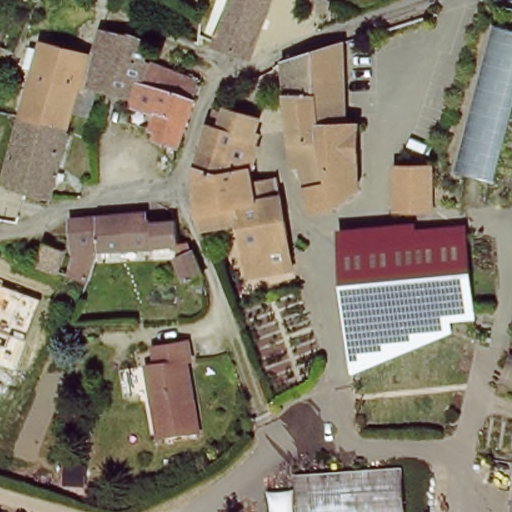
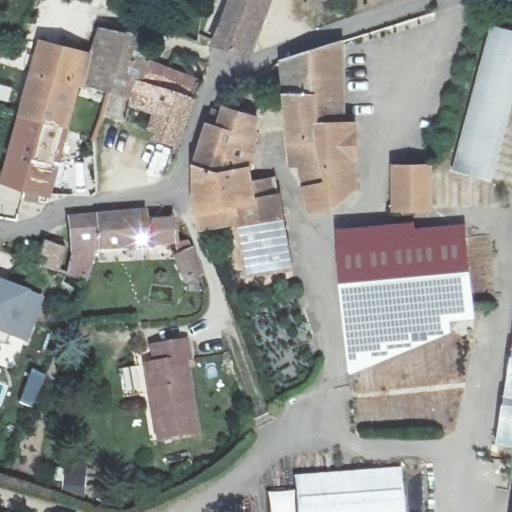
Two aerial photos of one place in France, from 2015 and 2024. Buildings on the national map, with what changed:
unchanged [(198,30),(212,0),(258,0),(238,44),(198,30)]
unchanged [(500,178),(459,171),(485,77),(498,31),(512,34),(512,134),(500,178)]
unchanged [(78,118),(73,131),(31,121),(60,49),(105,60),(119,35),(151,36),(173,44),(163,69),(143,64),(127,100),(145,106),(125,101),(103,95),(94,121),(78,118)]
unchanged [(359,205),(348,206),(326,206),(326,211),(301,213),(305,165),(293,164),(298,63),(330,53),(360,43),(358,73),(355,121),(365,117),(359,205)]
unchanged [(127,100),(143,64),(163,69),(185,74),(214,83),(184,144),(155,136),(158,130),(167,113),(145,106),(127,100)]
unchanged [(49,194),(7,180),(31,121),(73,131),(49,194)]
unchanged [(243,207),(198,210),(228,125),(244,131),(245,125),(265,132),(256,158),(259,165),(250,190),(274,187),(277,230),(279,278),(242,280),(242,230),(243,207)]
unchanged [(435,206),(395,206),(402,160),(441,161),(435,206)]
unchanged [(243,207),(242,230),(199,234),(194,219),(198,210),(243,207)]
unchanged [(158,215),(158,226),(192,218),(212,301),(187,303),(178,242),(163,245),(164,240),(85,258),(82,230),(158,215)]
unchanged [(475,319),(450,322),(450,333),(347,375),(336,229),(415,223),(416,228),(465,224),(475,319)]
unchanged [(40,266),(44,262),(54,246),(74,255),(64,278),(40,266)]
unchanged [(71,281),(82,262),(93,267),(79,286),(71,281)]
new [(12,339),(4,336),(2,346),(0,346),(0,283),(28,293),(42,298),(26,343),(12,339)]
unchanged [(190,356),(182,356),(195,428),(153,435),(147,363),(156,361),(155,346),(189,339),(190,356)]
new [(512,352),(512,446),(497,443),(512,352)]
demolished [(505,381),(512,358),(512,384),(505,381)]
unchanged [(64,461),(62,481),(42,479),(44,459),(64,461)]
unchanged [(414,512),(277,512),(277,500),(302,496),(304,480),(410,471),(414,512)]

